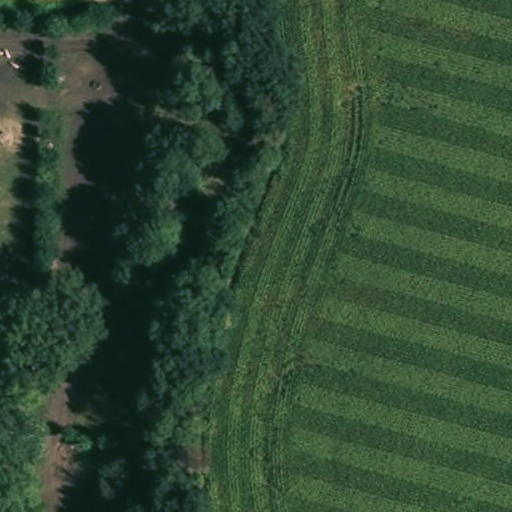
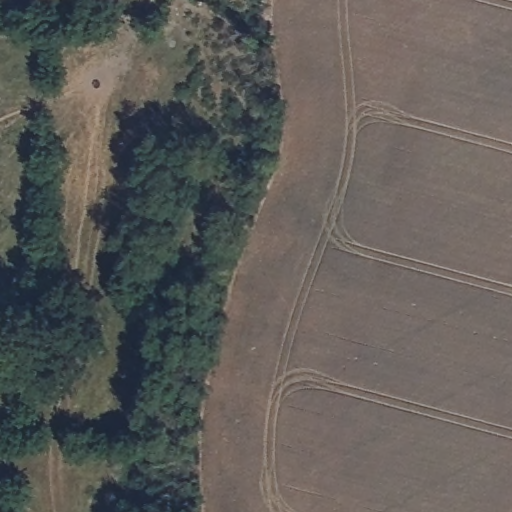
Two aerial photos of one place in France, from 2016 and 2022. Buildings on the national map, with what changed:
[]

